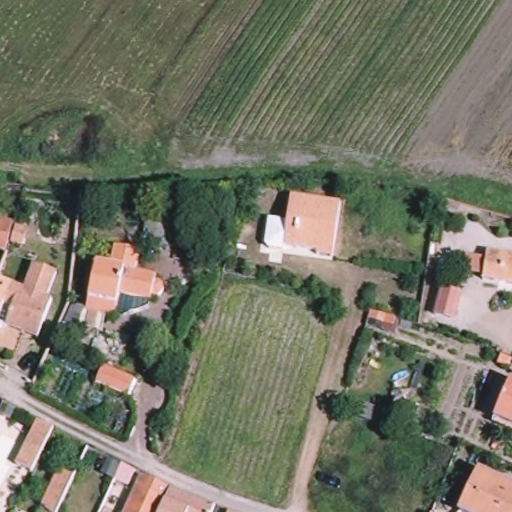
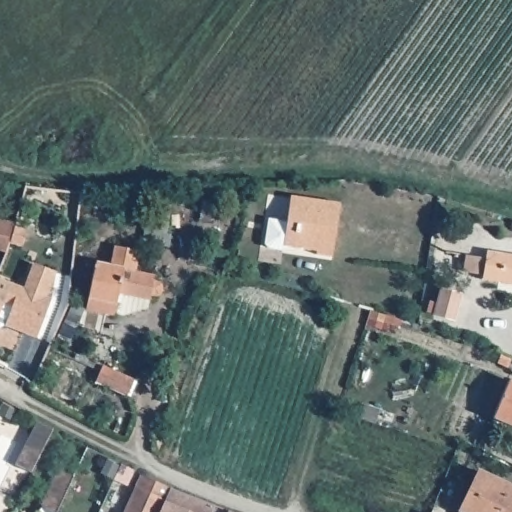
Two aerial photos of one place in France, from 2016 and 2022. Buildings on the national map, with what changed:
unchanged [(284,230),(286,204),(336,208),(331,259),(331,261),(315,260),(315,257),(294,255),(282,254),(281,258),(263,257),(264,253),(266,229),(284,230)]
unchanged [(3,253),(0,253),(0,222),(8,224),(3,253)]
unchanged [(88,310),(98,260),(111,262),(115,244),(139,251),(136,268),(157,275),(155,280),(163,282),(159,298),(150,296),(149,301),(120,296),(114,315),(88,310)]
unchanged [(484,257),(512,260),(512,289),(481,285),(484,257)]
unchanged [(14,305),(2,301),(9,280),(24,285),(32,262),(57,270),(48,298),(52,298),(37,338),(7,329),(14,305)]
unchanged [(124,395),(92,381),(99,365),(131,379),(124,395)]
unchanged [(504,387),(512,390),(512,435),(488,425),(504,387)]
unchanged [(36,458),(28,474),(11,466),(33,422),(49,431),(36,458)]
unchanged [(42,512),(37,507),(54,471),(70,480),(54,512),(42,512)]
unchanged [(126,512),(143,475),(153,480),(160,484),(170,488),(171,489),(161,512),(126,512)]
unchanged [(512,493),(512,512),(458,512),(475,476),(512,493)]
unchanged [(215,507),(213,512),(161,512),(171,489),(215,507)]

